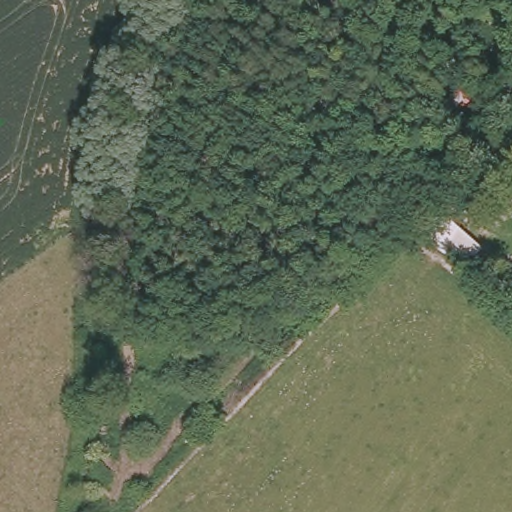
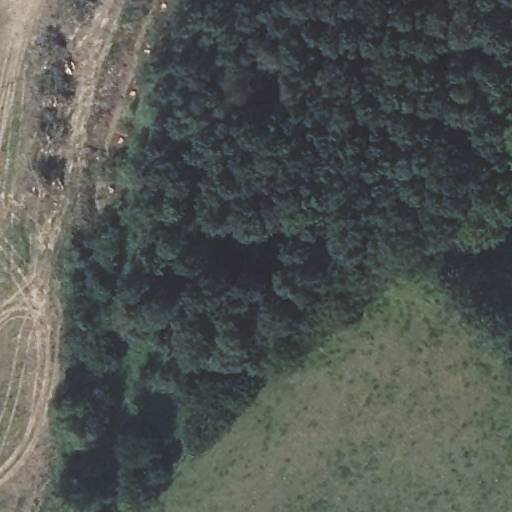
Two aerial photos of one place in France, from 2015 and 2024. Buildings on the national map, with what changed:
unchanged [(482,247),(461,270),(419,234),(439,209),(482,247)]

